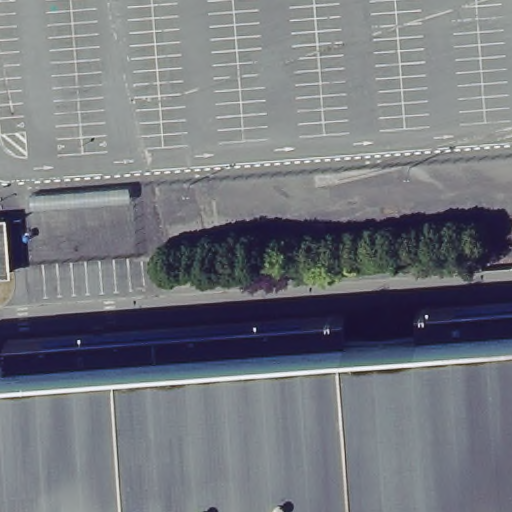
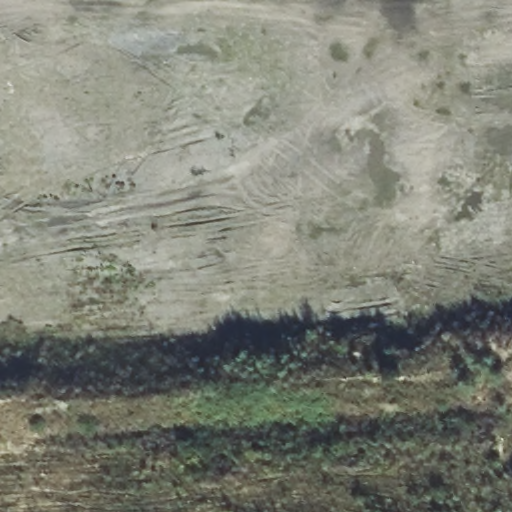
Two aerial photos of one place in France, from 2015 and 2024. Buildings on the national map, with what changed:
demolished [(1,239),(2,265),(0,265),(0,239),(1,239)]
demolished [(443,332),(420,333),(418,311),(512,303),(512,326),(443,332)]
demolished [(230,325),(345,317),(347,339),(136,354),(9,363),(8,341),(230,325)]
demolished [(9,363),(136,354),(347,339),(420,333),(443,332),(512,326),(512,512),(0,512),(0,363),(9,363)]

